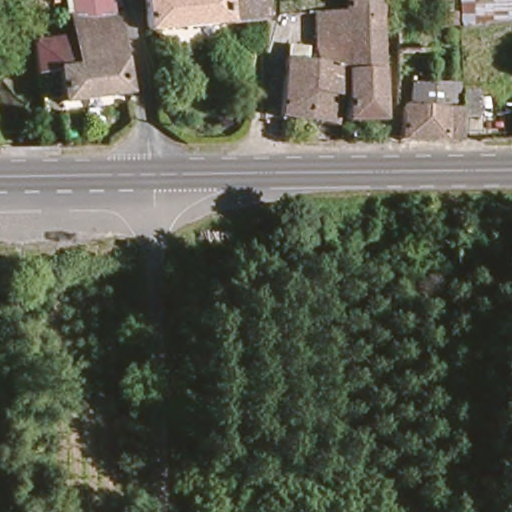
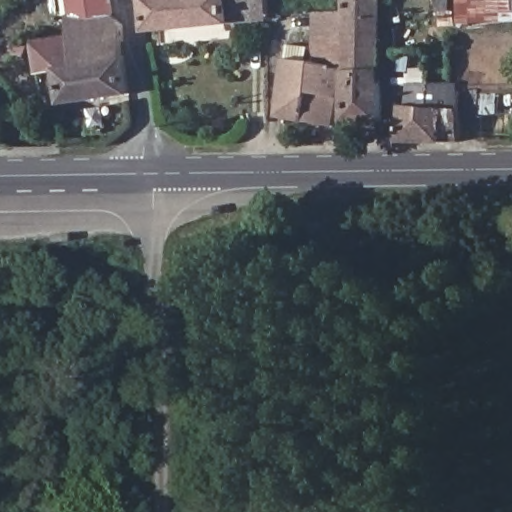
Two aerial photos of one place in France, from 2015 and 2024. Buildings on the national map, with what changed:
unchanged [(63,79),(40,81),(35,25),(71,21),(69,0),(109,0),(111,20),(121,28),(131,103),(63,107),(63,79)]
unchanged [(148,31),(144,0),(267,0),(267,23),(148,31)]
unchanged [(335,131),(275,122),(285,45),(313,48),(315,11),(338,13),(339,0),(385,0),(385,132),(335,131)]
unchanged [(453,0),(512,0),(512,14),(453,15),(453,0)]
unchanged [(413,89),(447,90),(447,113),(466,113),(467,144),(409,144),(409,108),(412,108),(412,100),(413,89)]
unchanged [(512,144),(483,144),(483,91),(512,92),(512,144)]

